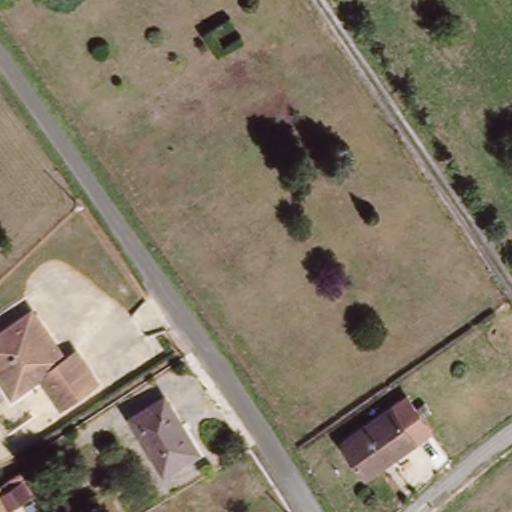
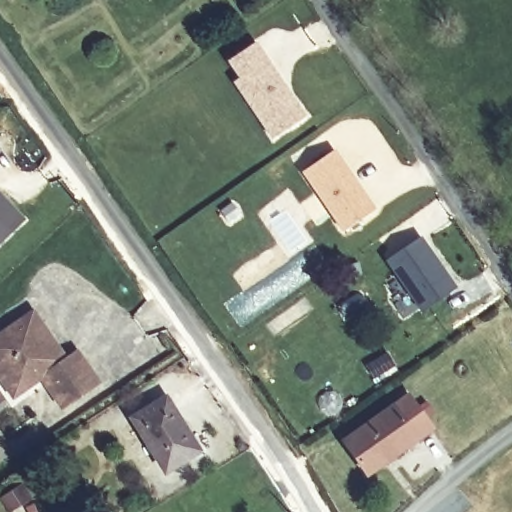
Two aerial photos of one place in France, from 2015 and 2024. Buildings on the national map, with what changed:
new [(256,40),(306,115),(274,136),(236,79),(241,75),(230,58),(256,40)]
new [(333,149),(373,209),(343,230),(302,170),(333,149)]
new [(0,244),(0,190),(26,218),(0,244)]
new [(421,235),(456,287),(423,310),(387,259),(421,235)]
unchanged [(75,355),(96,386),(58,412),(37,382),(11,400),(0,384),(0,335),(30,314),(63,363),(75,355)]
unchanged [(341,440),(409,399),(430,433),(361,475),(341,440)]
unchanged [(162,469),(133,421),(166,402),(195,450),(162,469)]
unchanged [(0,485),(20,474),(28,488),(5,501),(0,493),(0,485)]

